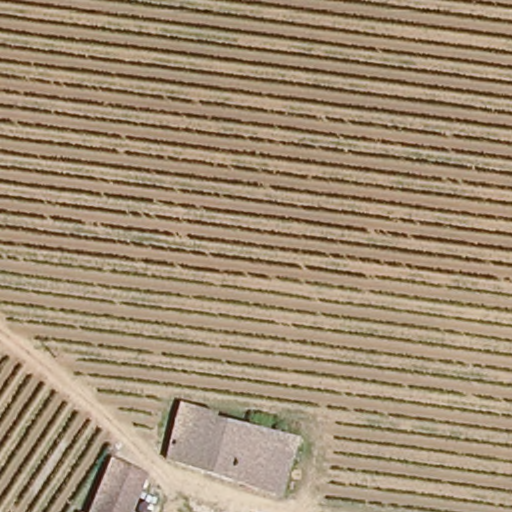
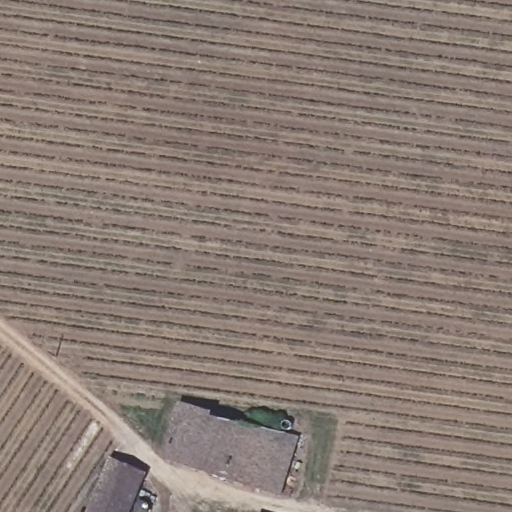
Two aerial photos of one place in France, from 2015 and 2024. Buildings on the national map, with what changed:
unchanged [(213,412),(212,415),(250,425),(251,416),(279,423),(278,432),(307,442),(304,452),(292,449),(281,492),(164,456),(164,454),(179,402),(213,412)]

